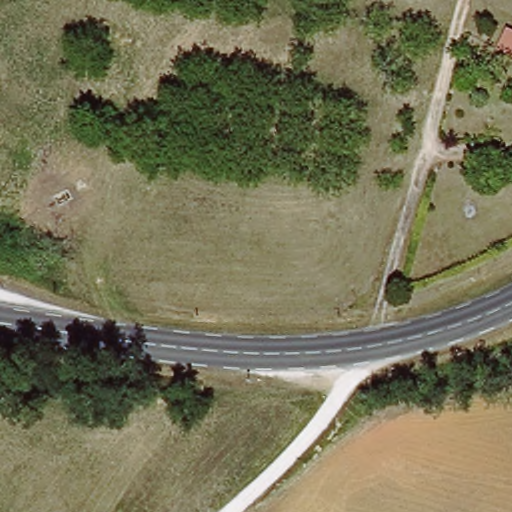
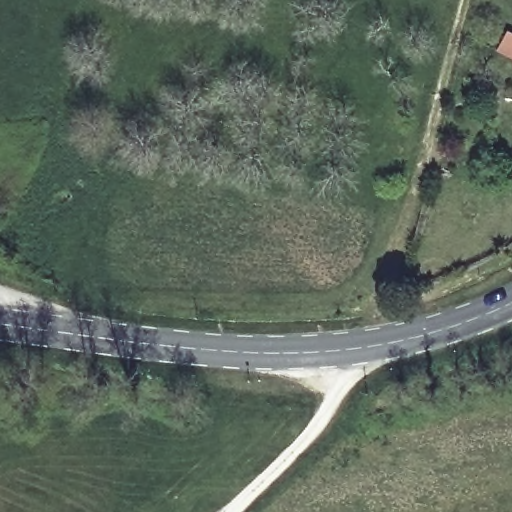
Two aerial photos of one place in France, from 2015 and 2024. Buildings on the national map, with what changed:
unchanged [(512,29),(512,53),(501,48),(510,29),(512,29)]

